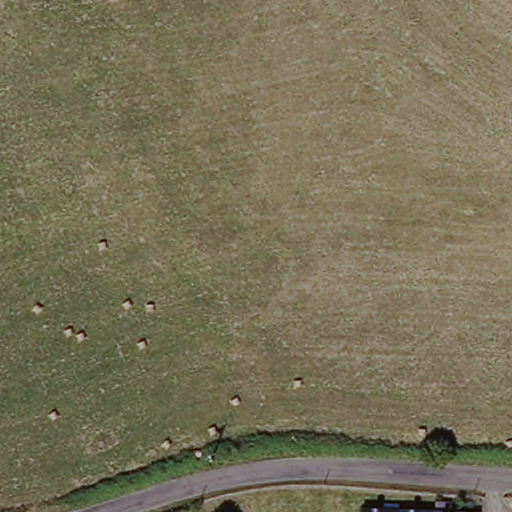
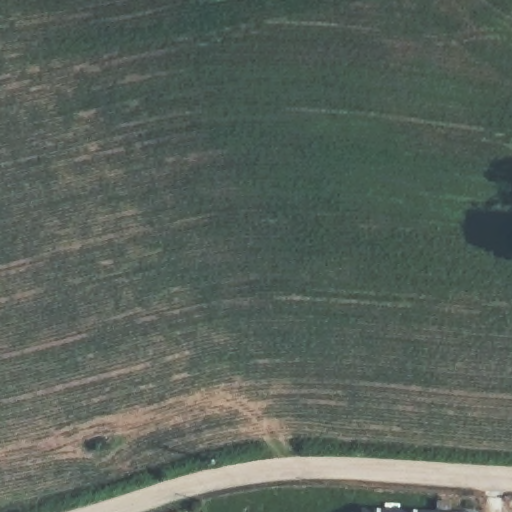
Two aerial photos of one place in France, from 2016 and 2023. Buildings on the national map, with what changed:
unchanged [(436,507),(452,507),(452,512),(435,512),(436,507)]

